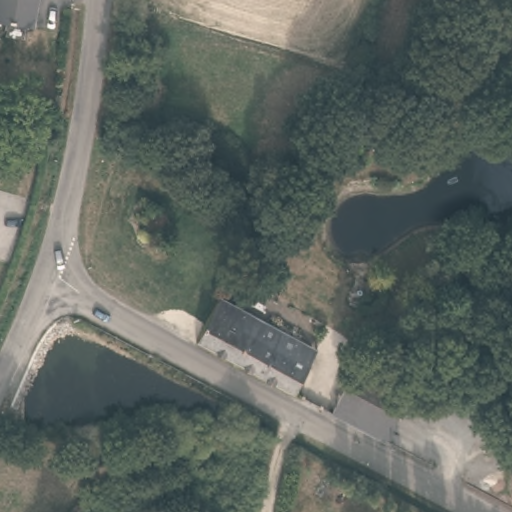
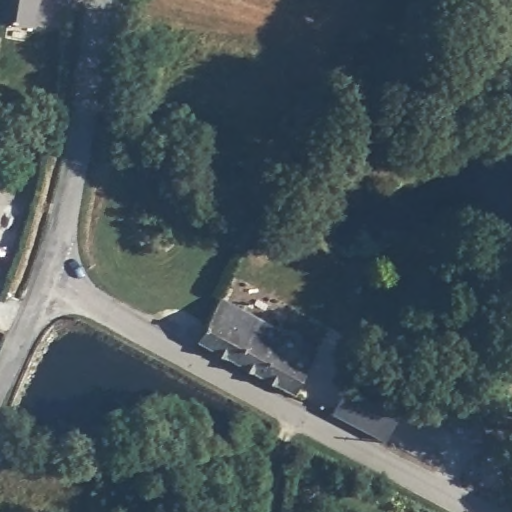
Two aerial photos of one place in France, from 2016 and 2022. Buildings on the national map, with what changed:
unchanged [(0,20),(0,0),(37,0),(34,24),(0,20)]
unchanged [(221,296),(317,350),(295,391),(202,341),(199,336),(221,296)]
unchanged [(406,396),(380,445),(342,425),(327,417),(351,372),(356,368),(370,376),(406,396)]

